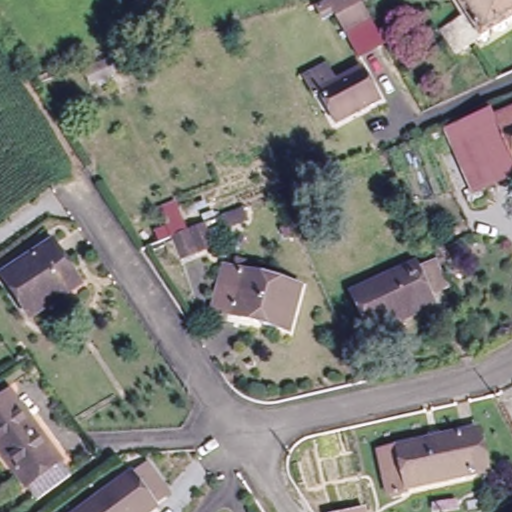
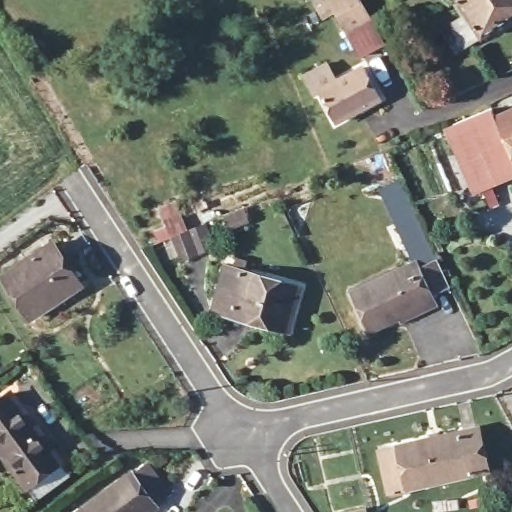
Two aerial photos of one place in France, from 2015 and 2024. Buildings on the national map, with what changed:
unchanged [(345,11),(334,17),(326,5),(334,0),(366,0),(377,18),(356,31),(345,11)]
unchanged [(447,23),(469,9),(463,0),(512,0),(512,14),(462,45),(447,23)]
unchanged [(341,114),(314,67),(331,57),(341,76),(367,61),(384,91),(341,114)]
unchanged [(90,76),(88,66),(111,59),(114,69),(90,76)]
unchanged [(512,104),(512,144),(497,111),(512,104)]
unchanged [(462,129),(497,111),(512,144),(512,175),(487,186),(462,129)]
unchanged [(196,227),(219,219),(226,239),(180,259),(157,209),(180,197),(196,227)]
unchanged [(31,311),(5,269),(57,238),(83,280),(31,311)]
unchanged [(437,290),(440,298),(377,326),(360,288),(422,258),(424,263),(441,254),(454,282),(437,290)]
unchanged [(213,307),(227,263),(301,284),(288,327),(213,307)]
unchanged [(38,482),(0,432),(0,400),(18,387),(71,458),(38,482)]
unchanged [(481,429),(490,468),(393,491),(384,450),(481,429)]
unchanged [(149,512),(81,512),(128,475),(130,478),(145,466),(167,494),(152,506),(154,508),(149,512)]
unchanged [(368,507),(368,512),(346,512),(368,507)]

